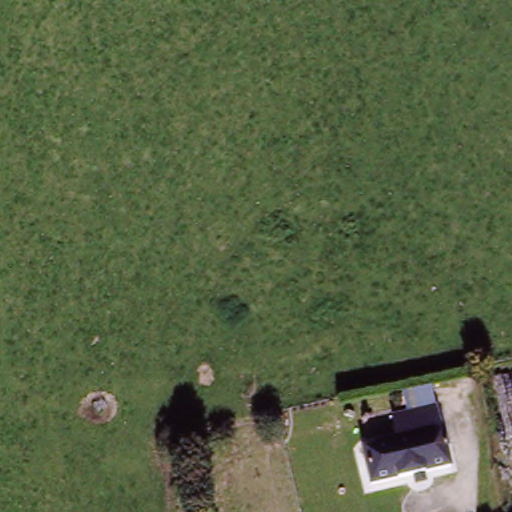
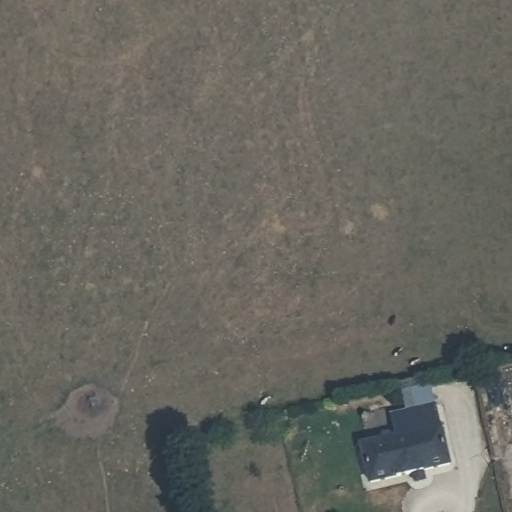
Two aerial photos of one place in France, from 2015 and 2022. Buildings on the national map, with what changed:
unchanged [(396,444),(390,419),(430,410),(435,436),(466,429),(472,461),(365,484),(359,452),(396,444)]

